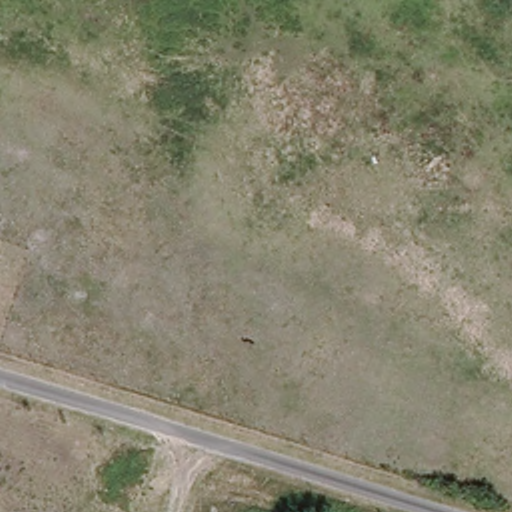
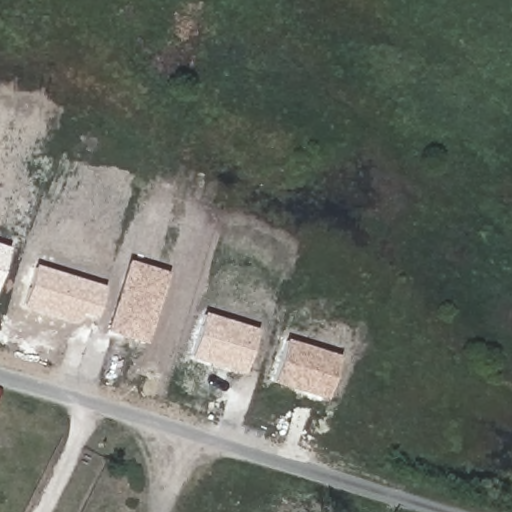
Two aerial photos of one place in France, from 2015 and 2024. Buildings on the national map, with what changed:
new [(0,245),(11,249),(0,283),(0,245)]
new [(108,332),(129,260),(170,272),(148,344),(108,332)]
new [(79,322),(24,305),(35,265),(106,286),(95,317),(81,313),(79,322)]
new [(245,374),(192,358),(204,312),(259,329),(245,374)]
new [(342,355),(329,399),(274,382),(288,339),(342,355)]

